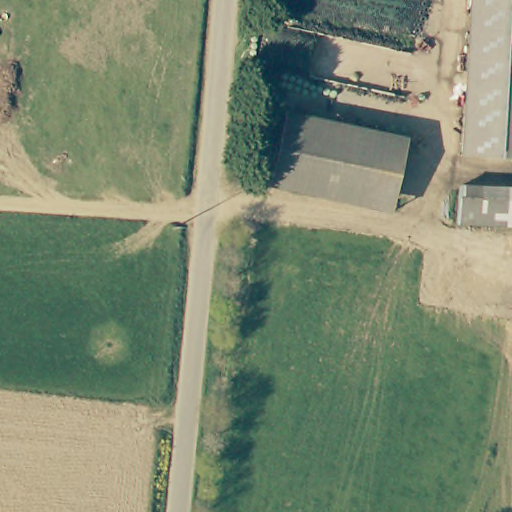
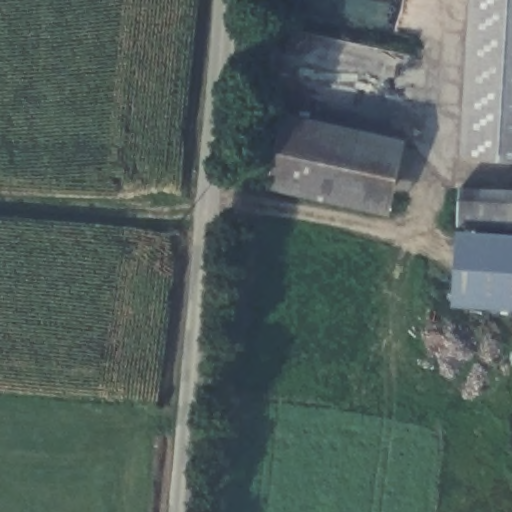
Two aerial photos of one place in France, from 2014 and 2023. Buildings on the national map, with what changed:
unchanged [(468,151),(476,0),(512,0),(512,153),(468,151)]
unchanged [(397,217),(268,189),(286,113),(413,141),(397,217)]
unchanged [(455,229),(457,187),(512,190),(512,232),(455,229)]
new [(512,232),(512,308),(453,305),(459,229),(512,232)]

